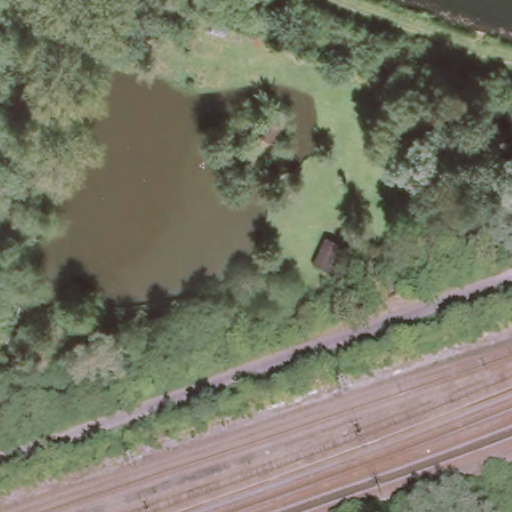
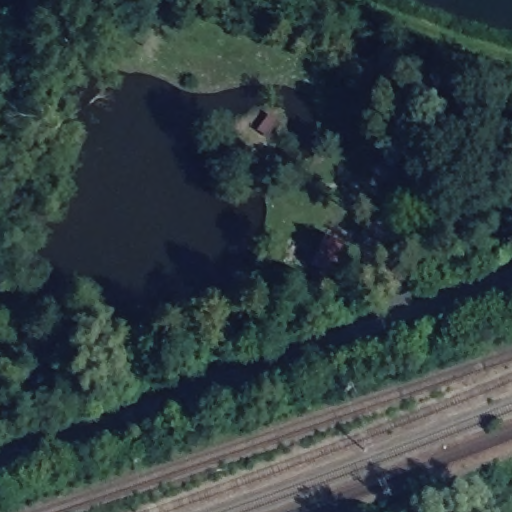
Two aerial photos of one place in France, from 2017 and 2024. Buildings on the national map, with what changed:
unchanged [(145,0),(145,24),(114,20),(114,0),(145,0)]
unchanged [(259,113),(280,120),(272,150),(250,147),(259,113)]

